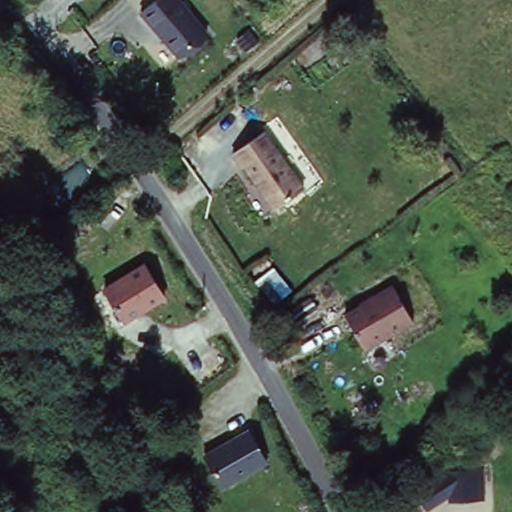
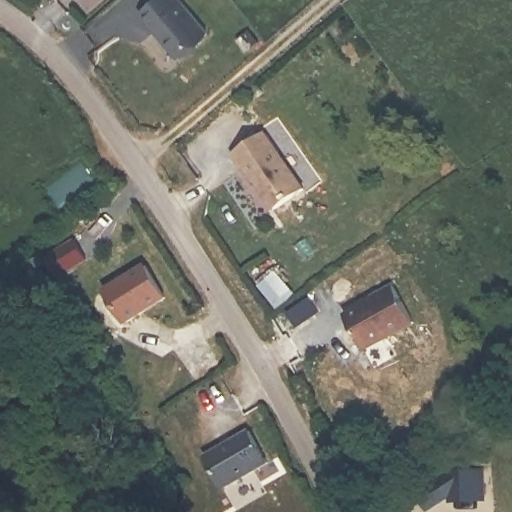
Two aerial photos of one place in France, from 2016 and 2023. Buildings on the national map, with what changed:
unchanged [(178,62),(138,14),(154,0),(176,0),(206,34),(178,62)]
unchanged [(308,184),(280,204),(249,161),(247,162),(236,149),(267,127),(308,184)]
unchanged [(126,325),(102,289),(145,264),(165,299),(126,325)]
unchanged [(372,298),(373,299),(394,285),(416,320),(369,348),(348,314),(372,298)]
unchanged [(225,487),(203,453),(248,429),(267,462),(225,487)]
unchanged [(448,499),(425,512),(424,512),(412,495),(446,470),(479,466),(482,500),(448,504),(448,499)]

